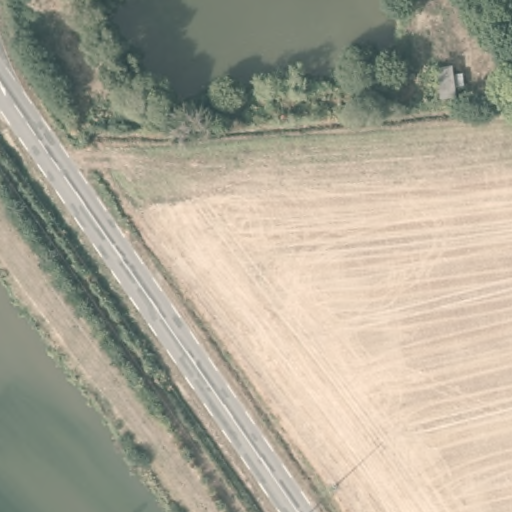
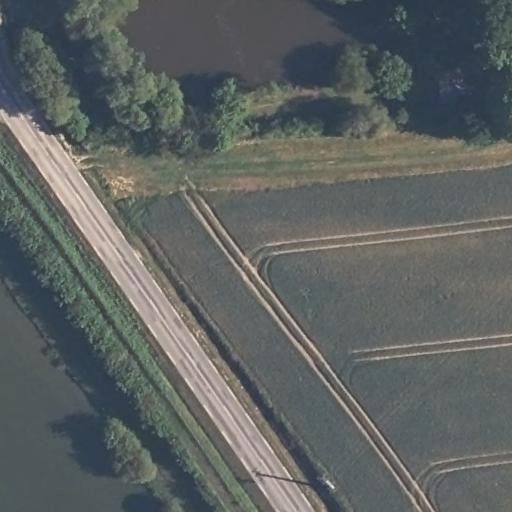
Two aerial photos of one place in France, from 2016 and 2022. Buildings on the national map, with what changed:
unchanged [(452,64),(455,97),(440,99),(435,67),(452,64)]

